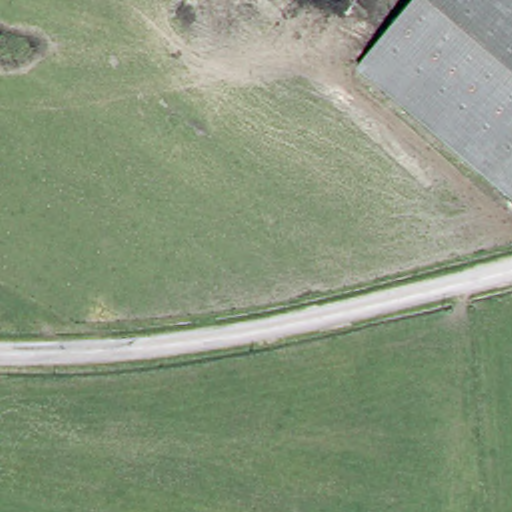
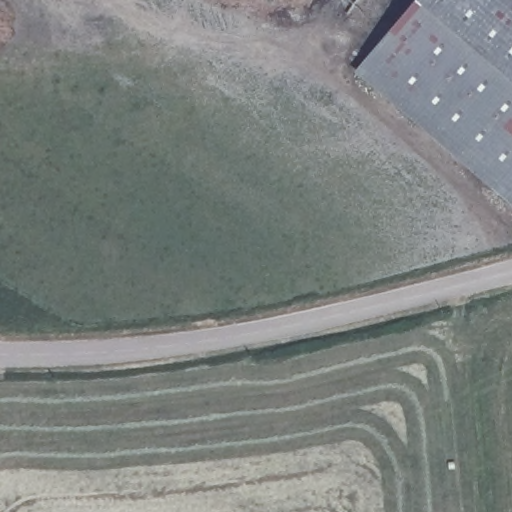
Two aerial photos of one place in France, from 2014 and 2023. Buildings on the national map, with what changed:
unchanged [(362,71),(422,0),(512,0),(512,199),(362,71)]

